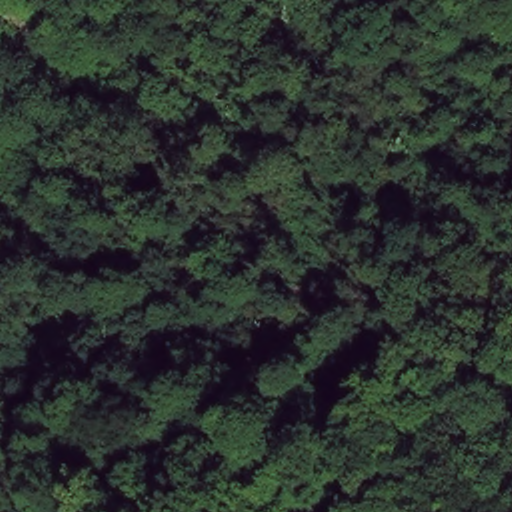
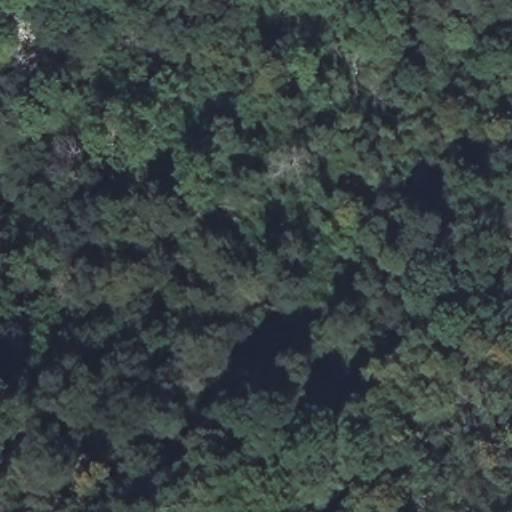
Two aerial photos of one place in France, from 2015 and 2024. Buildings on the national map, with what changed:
[]

